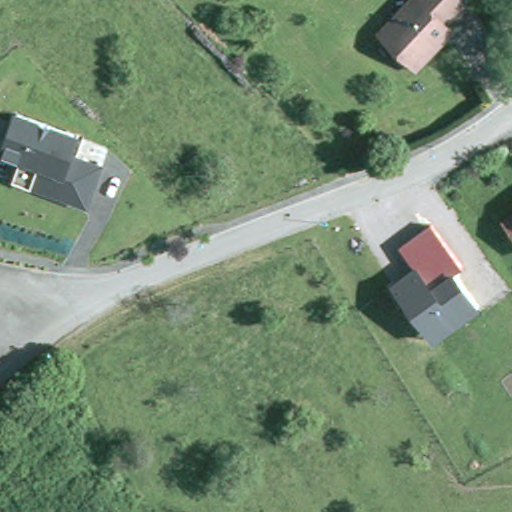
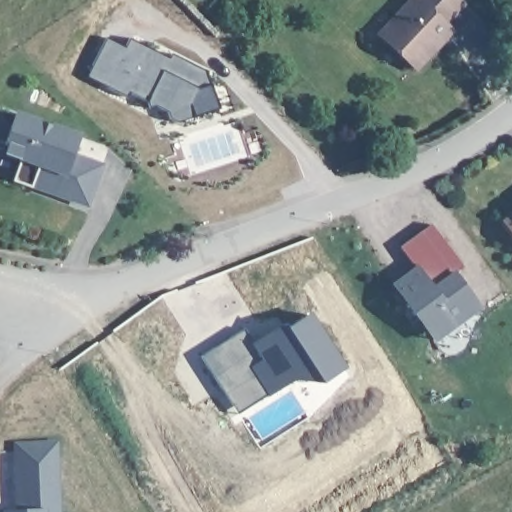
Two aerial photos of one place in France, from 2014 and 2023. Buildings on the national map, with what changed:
unchanged [(445,27),(426,50),(428,52),(415,69),(378,37),(409,0),(455,0),(459,3),(441,24),(445,27)]
new [(107,37),(127,46),(132,39),(171,58),(173,54),(207,71),(211,85),(218,109),(177,120),(170,117),(168,110),(157,105),(150,108),(147,100),(132,91),(128,96),(87,76),(107,37)]
unchanged [(31,187),(13,180),(21,158),(2,151),(16,113),(77,135),(71,154),(101,164),(87,204),(46,190),(32,185),(31,187)]
unchanged [(509,226),(512,223),(512,231),(509,226)]
unchanged [(462,266),(455,271),(480,307),(434,340),(389,281),(417,264),(398,246),(432,224),(462,266)]
new [(246,328),(255,340),(284,322),(288,328),(311,314),(346,367),(322,384),(293,380),(271,396),(269,393),(238,411),(203,356),(246,328)]
new [(6,510),(17,510),(14,441),(59,440),(62,512),(0,512),(0,509),(2,508),(6,510)]

